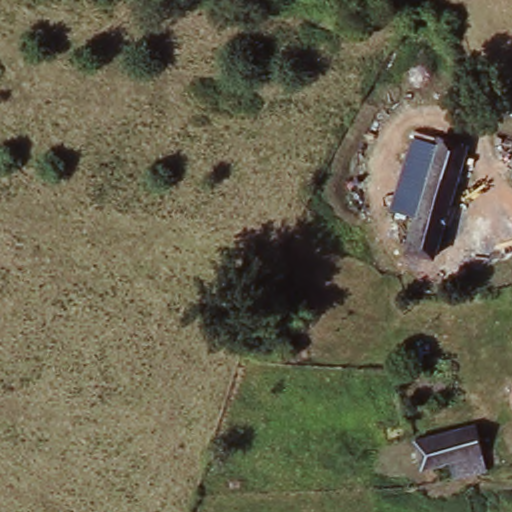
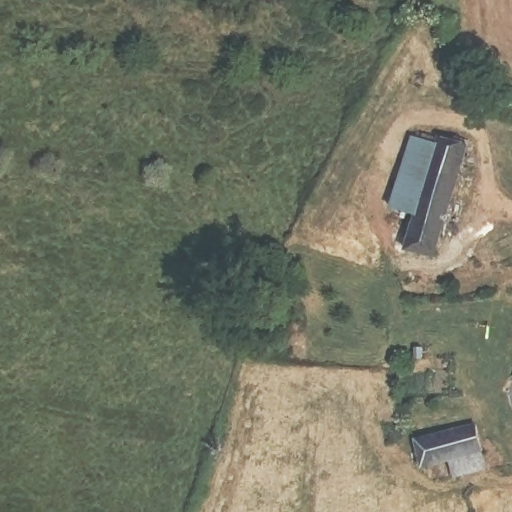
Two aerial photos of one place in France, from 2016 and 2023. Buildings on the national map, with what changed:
unchanged [(472,144),(437,261),(408,252),(442,135),(472,144)]
unchanged [(419,215),(392,207),(413,139),(440,145),(419,215)]
unchanged [(486,470),(451,475),(449,458),(420,463),(415,433),(479,424),(486,470)]

